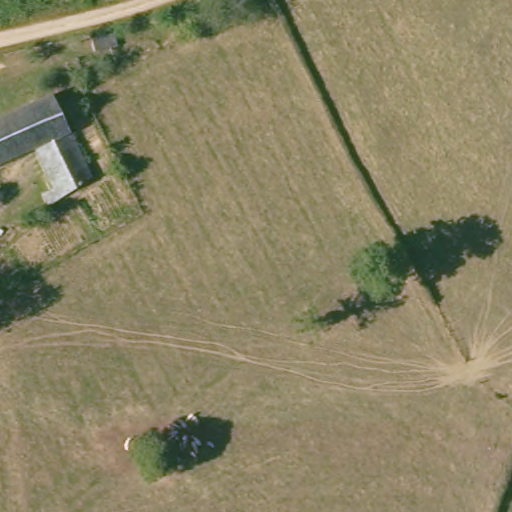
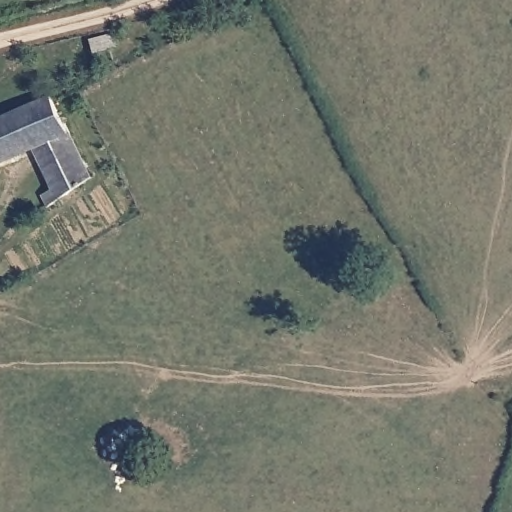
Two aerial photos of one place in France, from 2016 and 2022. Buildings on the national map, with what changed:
unchanged [(55,92),(88,176),(38,196),(35,185),(45,180),(33,146),(0,159),(0,113),(54,91),(55,92)]

